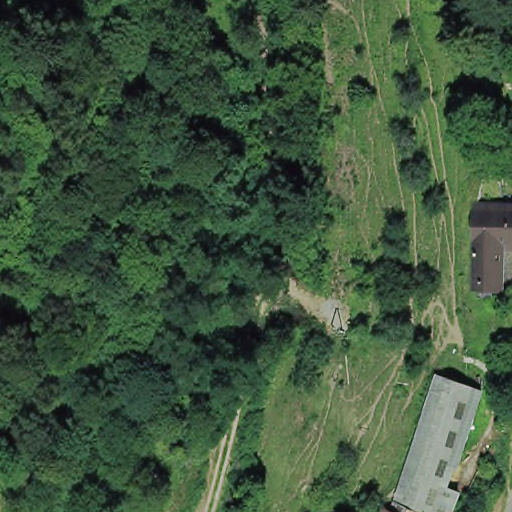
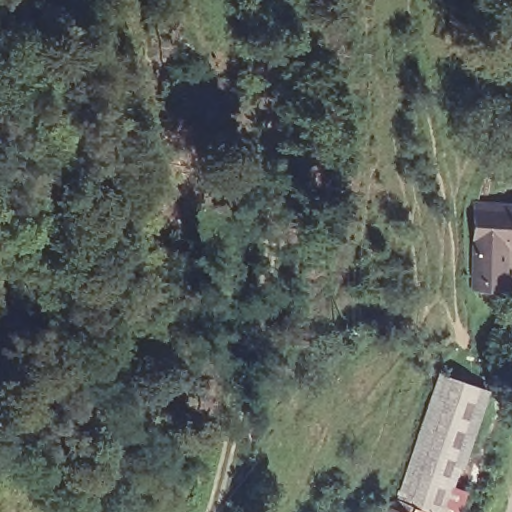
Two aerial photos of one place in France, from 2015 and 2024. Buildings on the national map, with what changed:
unchanged [(473,207),(512,207),(512,249),(500,249),(500,293),(474,292),(473,207)]
unchanged [(512,249),(512,293),(500,293),(500,249),(512,249)]
unchanged [(467,496),(459,512),(388,512),(389,511),(437,377),(490,398),(455,488),(467,496)]

